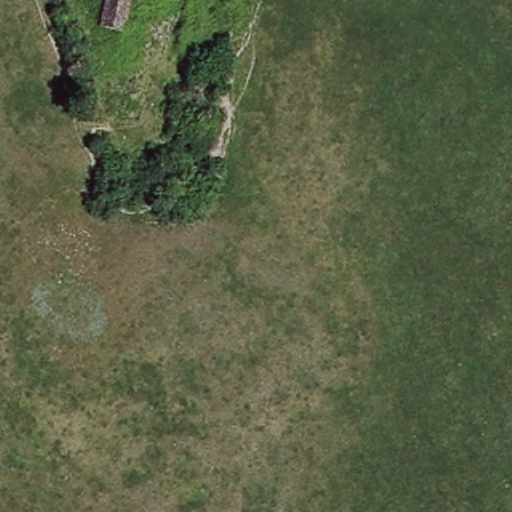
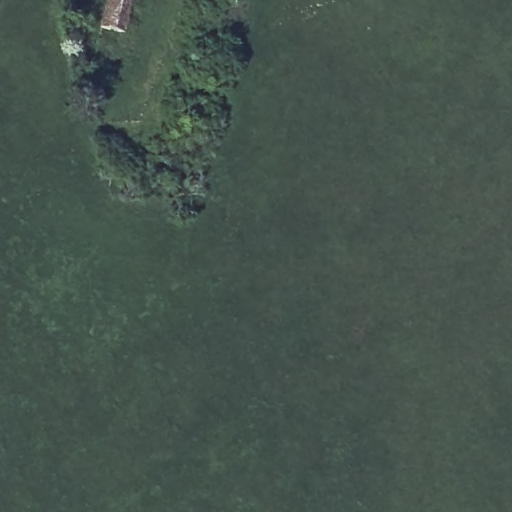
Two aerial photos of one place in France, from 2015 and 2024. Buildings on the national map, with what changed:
unchanged [(97,26),(108,0),(126,0),(114,32),(97,26)]
unchanged [(120,156),(142,163),(130,197),(109,188),(120,156)]

